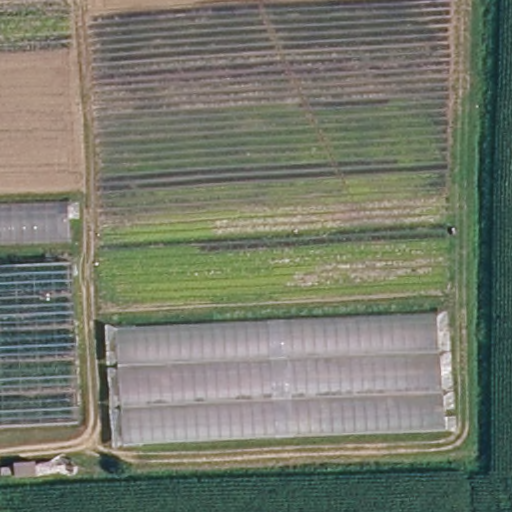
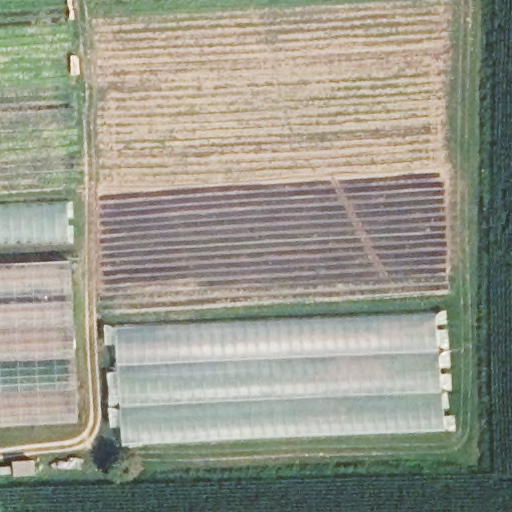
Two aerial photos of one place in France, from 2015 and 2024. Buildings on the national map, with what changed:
unchanged [(69,203),(70,242),(61,242),(0,245),(0,206),(57,203),(69,203)]
unchanged [(71,262),(78,413),(79,423),(0,427),(0,265),(63,262),(71,262)]
unchanged [(435,303),(442,426),(120,447),(111,324),(435,303)]
unchanged [(36,476),(15,477),(14,463),(35,462),(36,476)]

